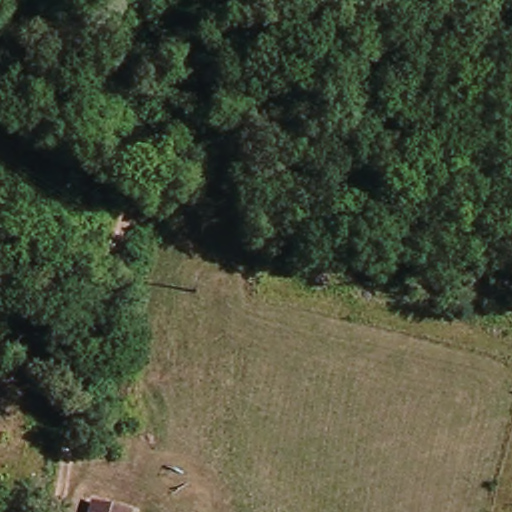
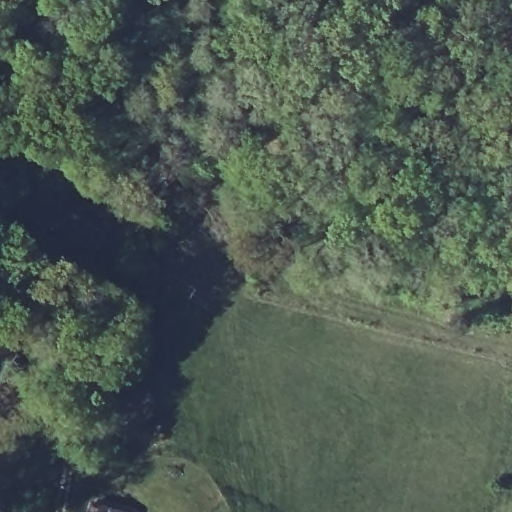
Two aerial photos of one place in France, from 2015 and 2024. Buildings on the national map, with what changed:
unchanged [(123,510),(130,511),(129,512),(90,512),(92,502),(123,510)]

